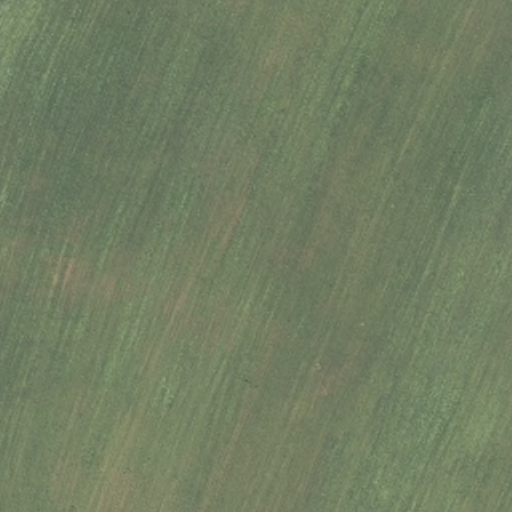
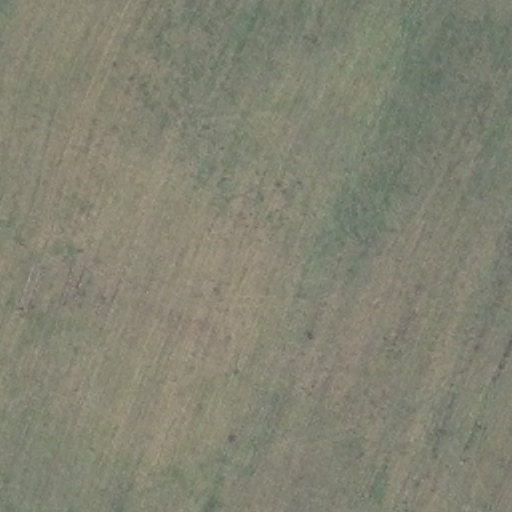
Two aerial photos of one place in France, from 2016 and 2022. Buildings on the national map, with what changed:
[]

